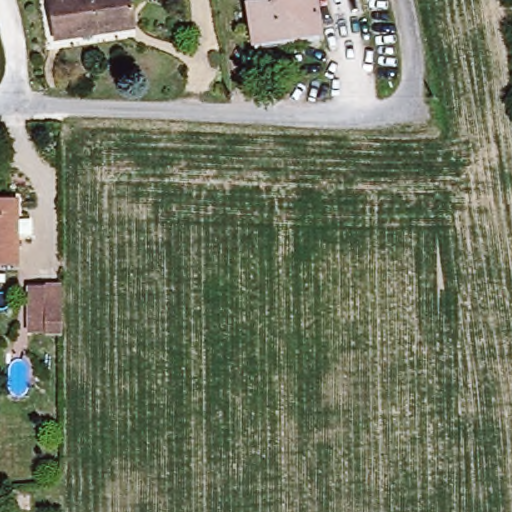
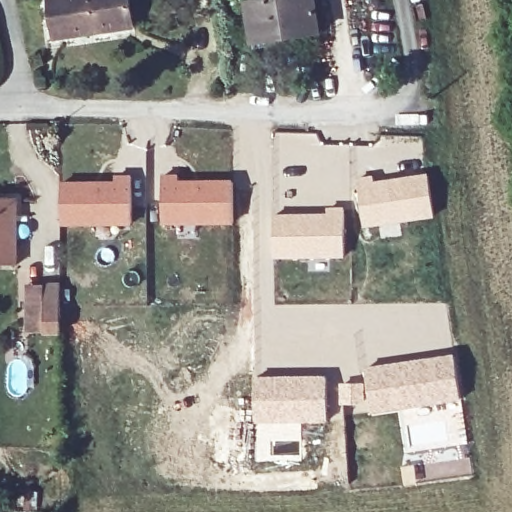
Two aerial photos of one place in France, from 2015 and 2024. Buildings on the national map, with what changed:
unchanged [(54,38),(49,0),(128,0),(131,26),(94,32),(70,35),(54,38)]
unchanged [(246,3),(265,0),(314,0),(318,32),(252,42),(246,3)]
new [(374,175),(375,180),(428,172),(435,218),(400,223),(402,235),(380,237),(379,226),(363,229),(355,177),(374,175)]
new [(161,175),(179,174),(180,179),(233,179),(233,225),(161,225),(161,175)]
new [(61,180),(113,180),(113,175),(132,175),(132,225),(60,226),(61,180)]
unchanged [(15,265),(0,265),(0,199),(15,199),(15,265)]
new [(273,213),(326,212),(326,206),(344,206),(345,258),(273,258),(273,213)]
unchanged [(60,333),(27,333),(27,312),(27,286),(43,285),(60,285),(60,333)]
new [(365,381),(363,367),(455,353),(461,400),(370,415),(368,402),(340,404),(339,382),(365,381)]
new [(328,375),(328,422),(301,422),(254,423),(253,375),(328,375)]
new [(254,423),(301,422),(300,456),(254,460),(254,423)]
new [(469,457),(471,473),(426,478),(424,464),(469,457)]

